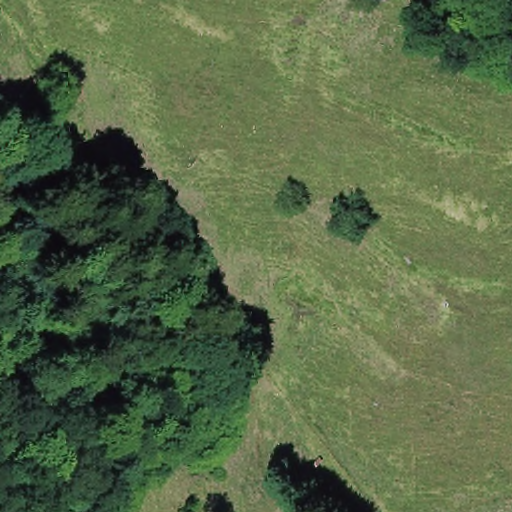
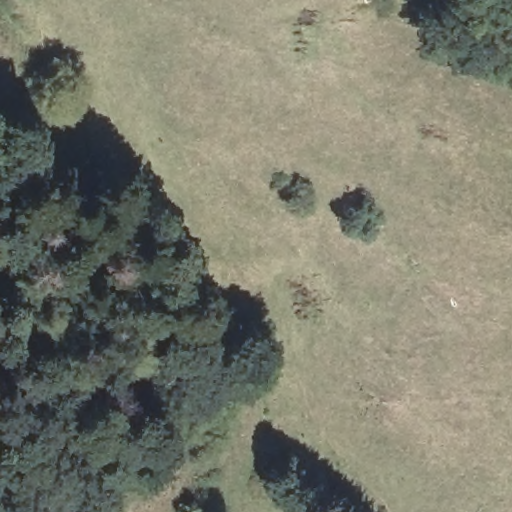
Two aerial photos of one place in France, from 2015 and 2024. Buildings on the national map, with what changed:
[]

